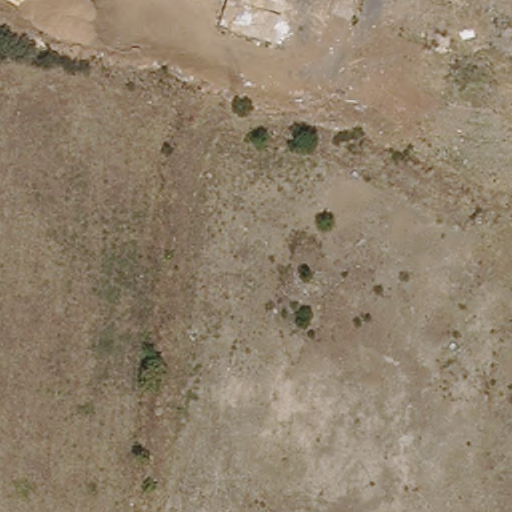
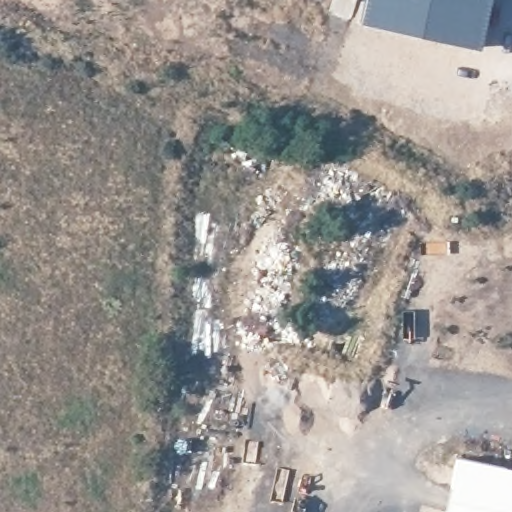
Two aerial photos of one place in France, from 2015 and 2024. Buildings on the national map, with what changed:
new [(361,21),(365,0),(491,0),(481,46),(361,21)]
new [(458,457),(512,467),(512,512),(447,512),(458,457)]

